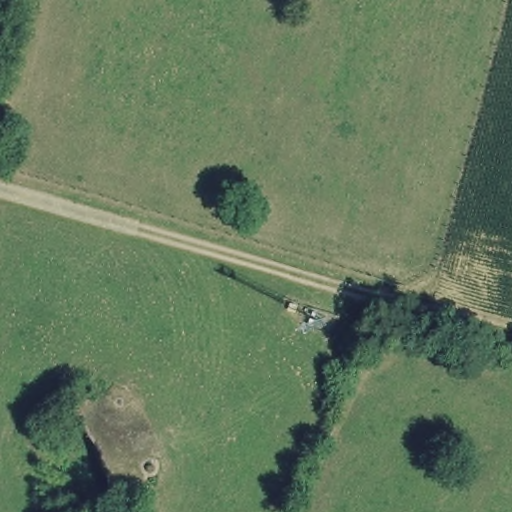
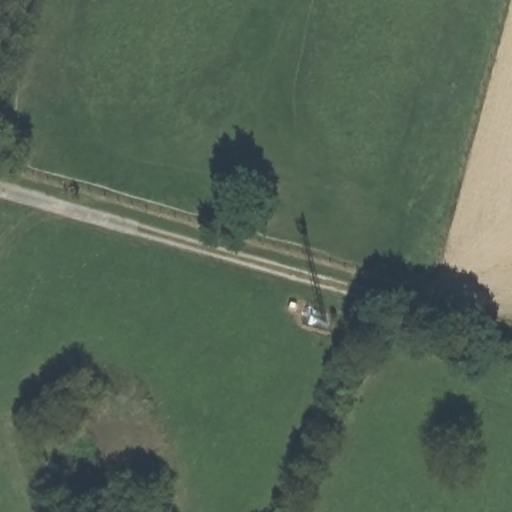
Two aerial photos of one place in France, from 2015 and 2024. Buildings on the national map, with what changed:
unchanged [(178,482),(116,507),(71,402),(131,378),(178,482)]

